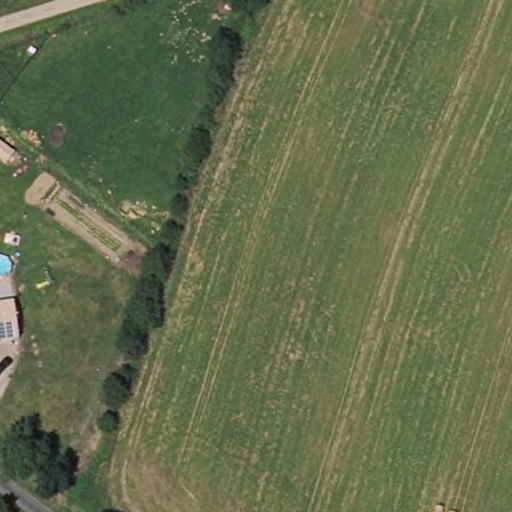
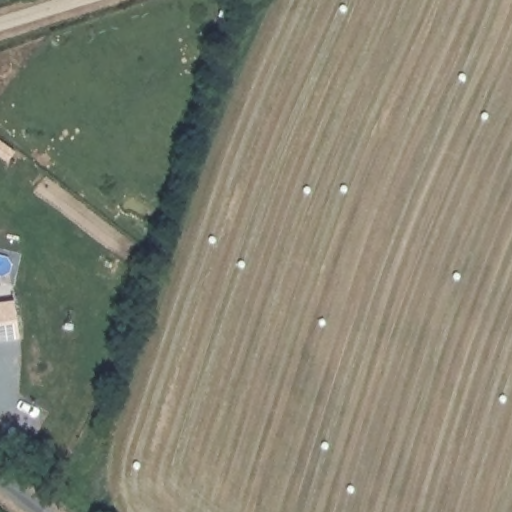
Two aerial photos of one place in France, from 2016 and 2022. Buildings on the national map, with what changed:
unchanged [(19,343),(0,346),(0,306),(14,305),(19,343)]

